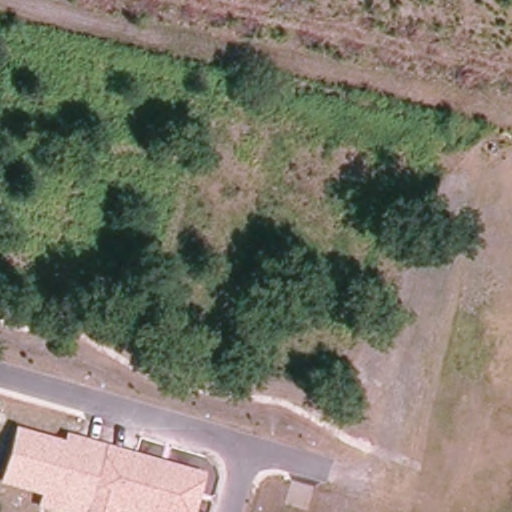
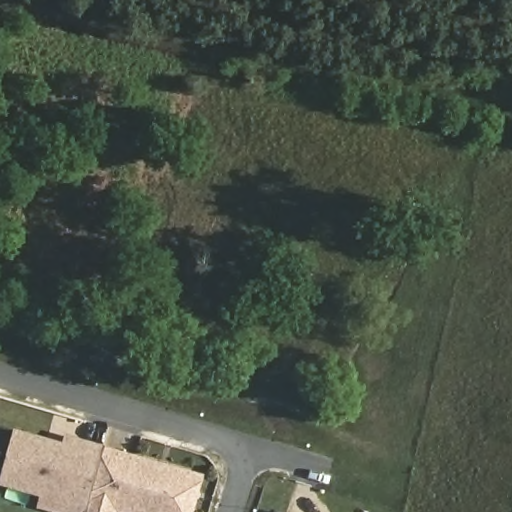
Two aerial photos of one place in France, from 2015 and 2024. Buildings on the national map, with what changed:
unchanged [(50,512),(37,508),(41,495),(1,484),(16,428),(63,441),(66,432),(206,473),(193,512),(50,512)]

